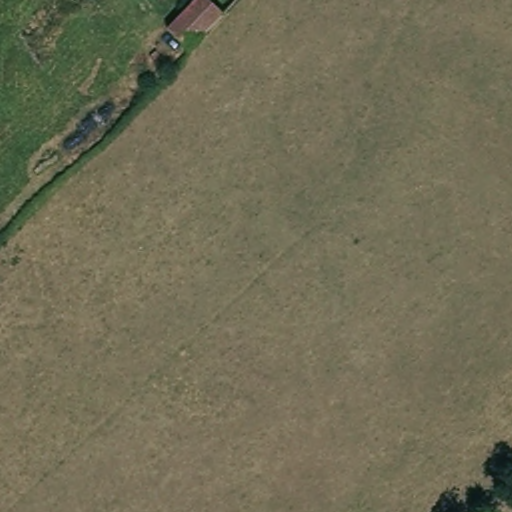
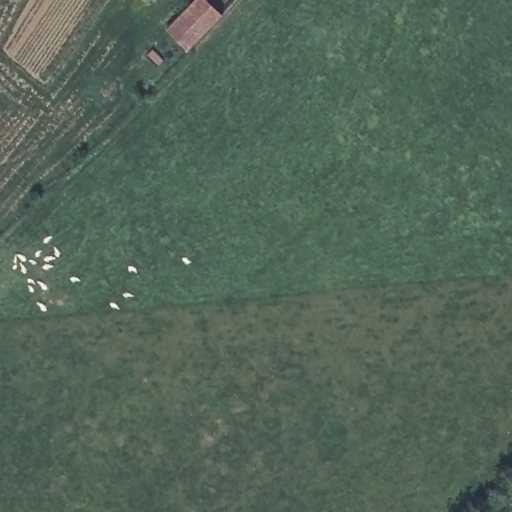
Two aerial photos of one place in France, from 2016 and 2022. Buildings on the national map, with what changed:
unchanged [(188,50),(170,32),(166,27),(194,0),(214,0),(225,11),(188,50)]

